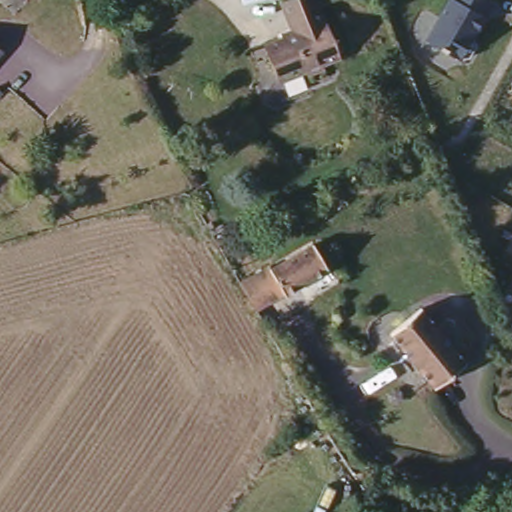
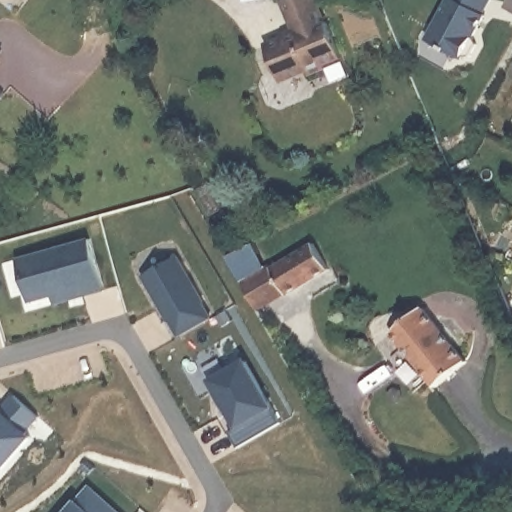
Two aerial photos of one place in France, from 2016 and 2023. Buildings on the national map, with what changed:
unchanged [(281,0),(314,0),(325,26),(328,25),(342,60),(324,66),(326,73),(303,82),(301,76),(277,86),(260,49),(282,41),(281,33),(289,30),(277,1),(281,0)]
unchanged [(490,0),(492,1),(463,63),(425,41),(449,0),(490,0)]
unchanged [(271,263),(273,265),(314,240),(329,265),(287,291),(286,289),(270,299),(254,273),(271,263)]
new [(102,287),(55,302),(54,298),(29,304),(16,261),(88,241),(102,287)]
new [(212,319),(179,338),(143,277),(179,256),(212,319)]
unchanged [(511,287),(512,285),(512,287),(511,287)]
unchanged [(396,329),(427,304),(470,359),(439,384),(396,329)]
new [(245,364),(281,425),(236,451),(228,436),(237,431),(209,384),(245,364)]
new [(23,436),(29,442),(0,474),(0,419),(0,413),(12,400),(36,422),(23,436)]
new [(119,512),(65,512),(75,501),(88,486),(119,512)]

